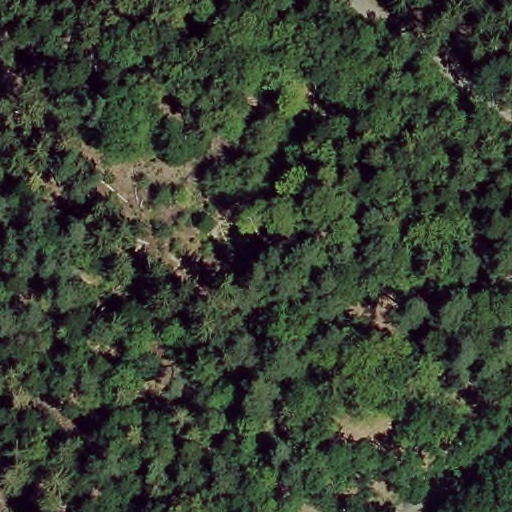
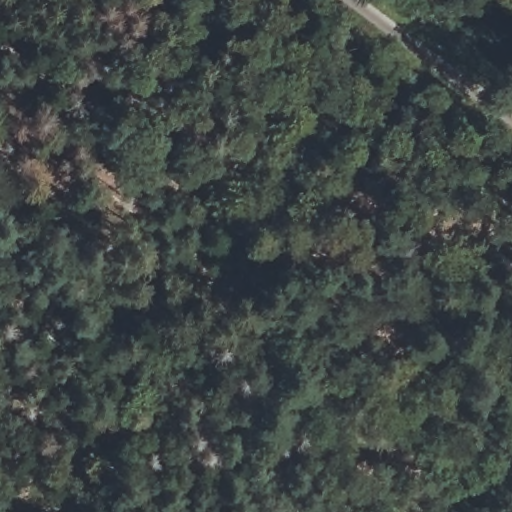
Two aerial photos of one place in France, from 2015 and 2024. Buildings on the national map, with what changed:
[]

